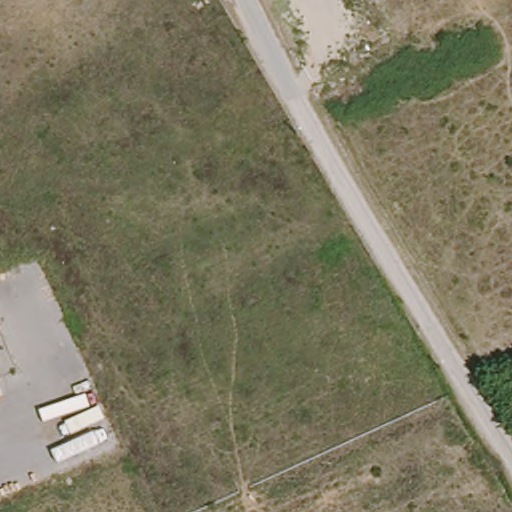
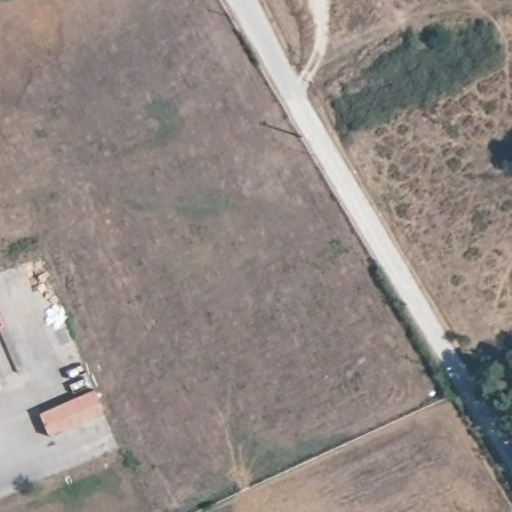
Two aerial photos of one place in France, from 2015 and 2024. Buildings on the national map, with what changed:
new [(48,435),(39,413),(93,389),(103,411),(48,435)]

